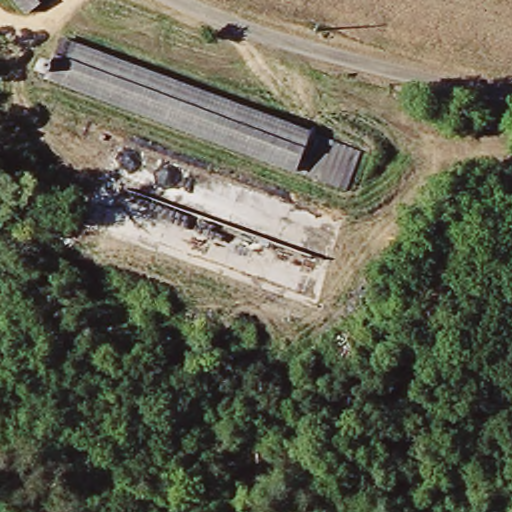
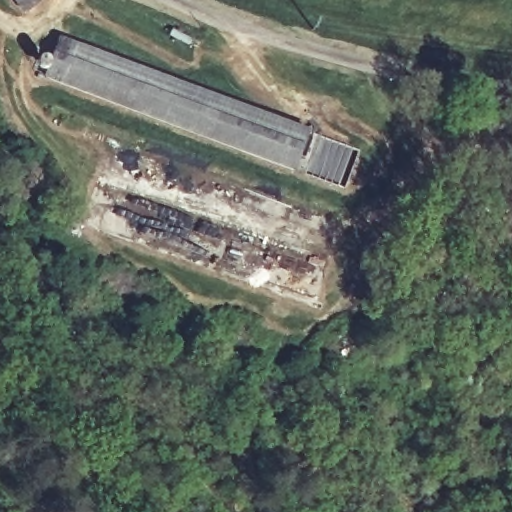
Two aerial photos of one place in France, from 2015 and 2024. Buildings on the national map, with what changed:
unchanged [(29,13),(19,0),(40,0),(42,2),(29,13)]
unchanged [(340,186),(43,74),(56,38),(355,150),(340,186)]

